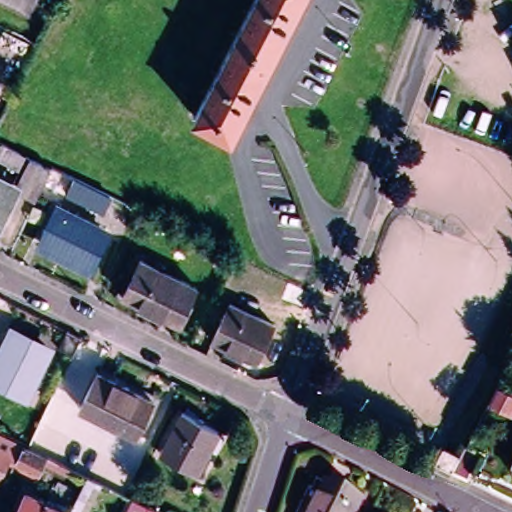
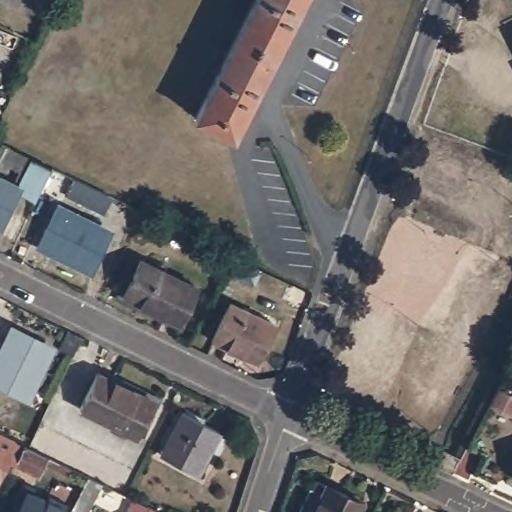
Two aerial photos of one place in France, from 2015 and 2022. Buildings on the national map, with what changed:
unchanged [(192,117),(253,0),(299,0),(228,135),(192,117)]
unchanged [(12,179),(18,168),(0,159),(0,149),(3,143),(46,164),(33,190),(12,179)]
unchanged [(96,207),(62,190),(70,177),(104,193),(96,207)]
unchanged [(0,187),(15,194),(0,223),(0,187)]
unchanged [(93,267),(48,245),(65,210),(110,233),(93,267)]
unchanged [(178,324),(124,297),(140,263),(195,290),(178,324)]
unchanged [(253,362),(213,341),(231,307),(272,328),(253,362)]
unchanged [(80,341),(70,359),(55,351),(64,333),(80,341)]
unchanged [(22,399),(0,389),(0,350),(7,334),(46,352),(22,399)]
unchanged [(150,397),(134,432),(79,406),(96,370),(150,397)]
unchanged [(491,382),(512,392),(512,401),(507,410),(483,398),(491,382)]
unchanged [(220,432),(197,474),(162,457),(185,415),(220,432)]
unchanged [(62,476),(39,464),(32,478),(8,466),(1,461),(0,464),(0,442),(16,449),(17,447),(65,470),(62,476)]
unchanged [(475,451),(461,476),(445,468),(430,461),(438,445),(453,452),(459,443),(475,451)]
unchanged [(510,476),(512,473),(512,477),(510,476)]
unchanged [(96,490),(85,512),(67,512),(81,482),(96,490)]
unchanged [(358,505),(355,512),(313,512),(324,488),(358,505)]
unchanged [(30,499),(27,504),(44,512),(8,512),(17,494),(30,499)]

